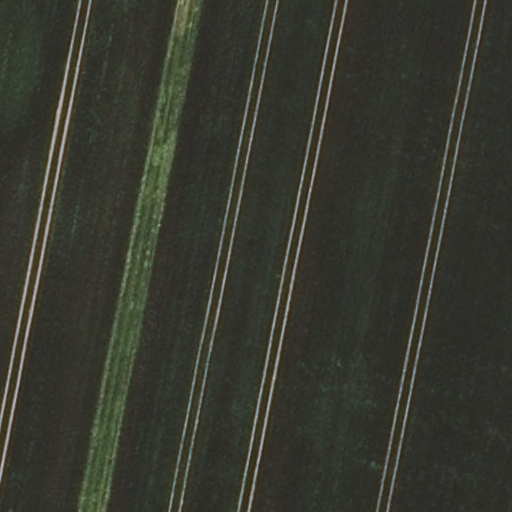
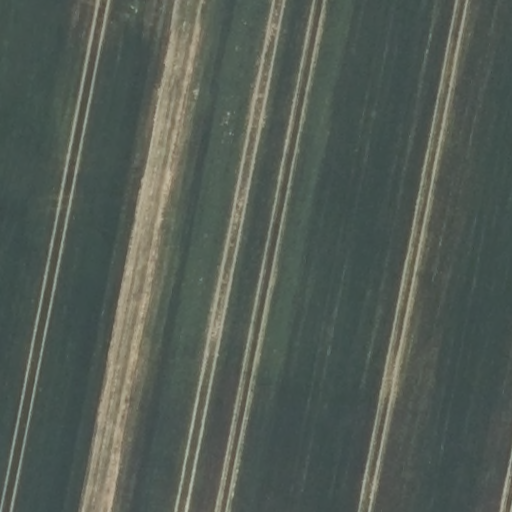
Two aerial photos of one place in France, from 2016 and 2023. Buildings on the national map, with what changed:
[]

